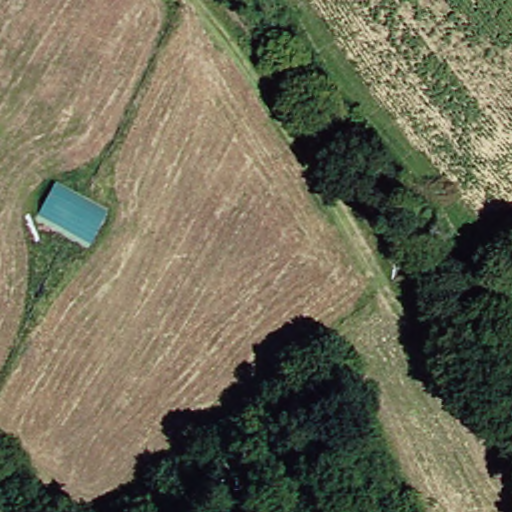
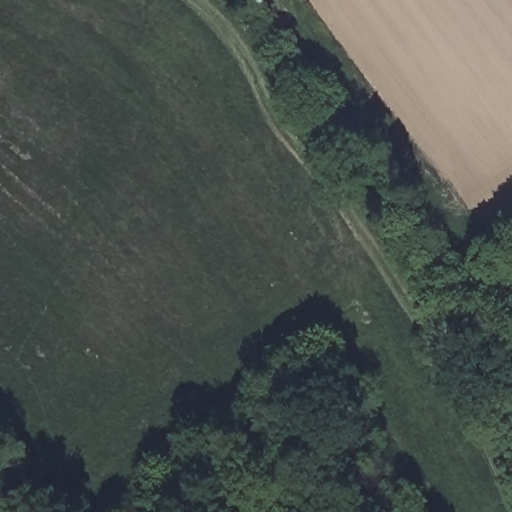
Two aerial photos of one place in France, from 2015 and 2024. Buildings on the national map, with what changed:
demolished [(89,241),(36,216),(51,188),(105,212),(89,241)]

